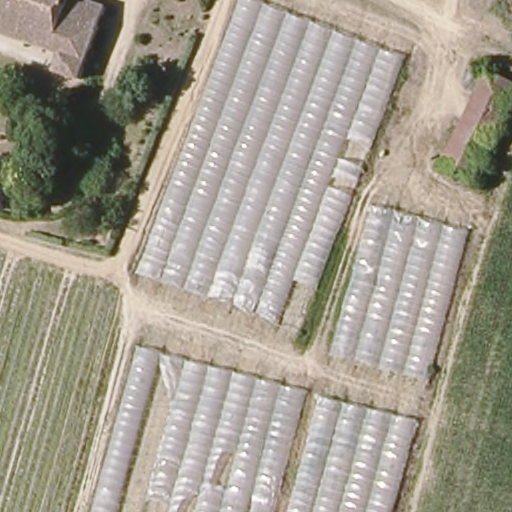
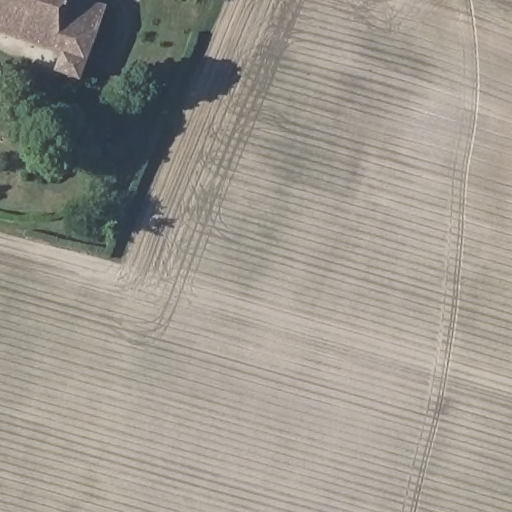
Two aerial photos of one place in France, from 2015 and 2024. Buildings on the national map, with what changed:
unchanged [(81,78),(60,70),(64,55),(0,32),(0,0),(78,0),(106,10),(81,78)]
demolished [(296,337),(140,279),(244,0),(247,0),(401,60),(296,337)]
demolished [(442,166),(488,74),(512,85),(512,111),(474,184),(442,166)]
demolished [(97,512),(143,352),(423,424),(398,512),(97,512)]

